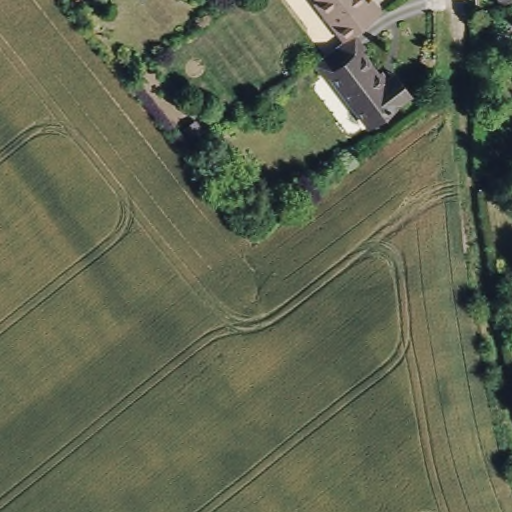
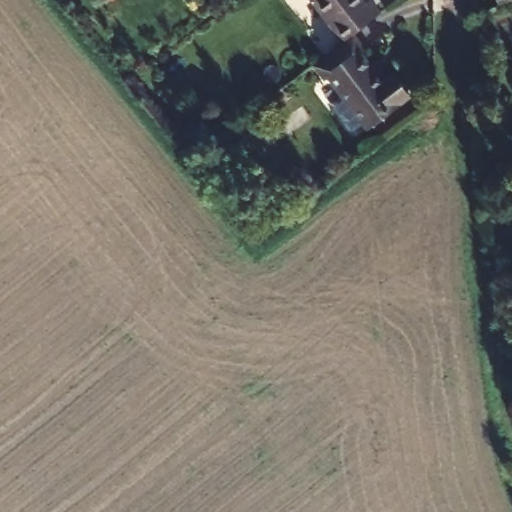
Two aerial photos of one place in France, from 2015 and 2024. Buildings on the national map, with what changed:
unchanged [(359,50),(384,81),(392,76),(409,98),(368,129),(325,75),(322,78),(313,68),(327,57),(345,43),(355,36),(364,47),(359,50)]

